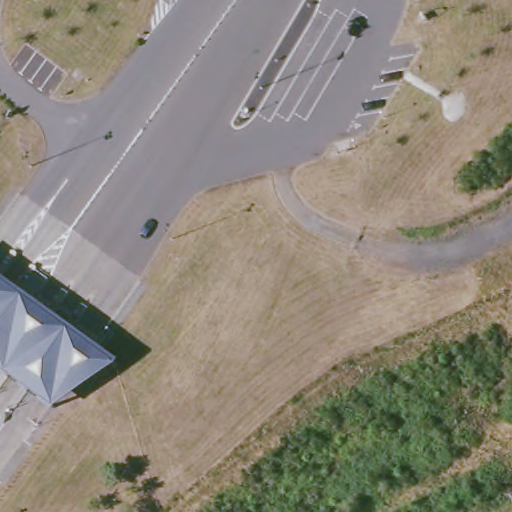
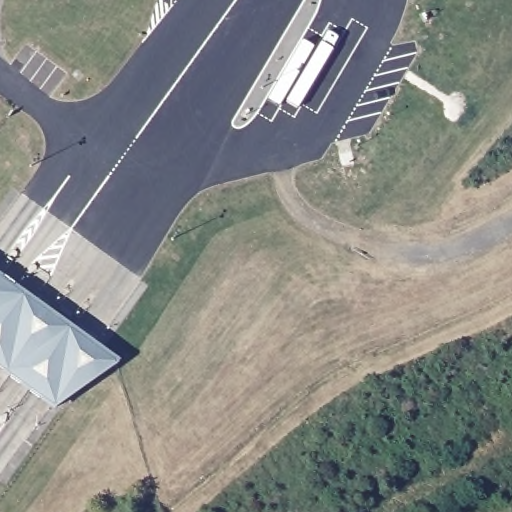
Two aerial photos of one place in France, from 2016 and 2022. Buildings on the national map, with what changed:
unchanged [(117,364),(54,409),(49,406),(0,370),(0,279),(92,346),(117,364)]

